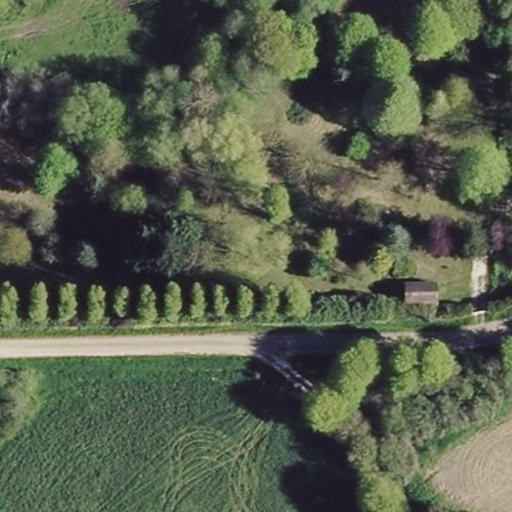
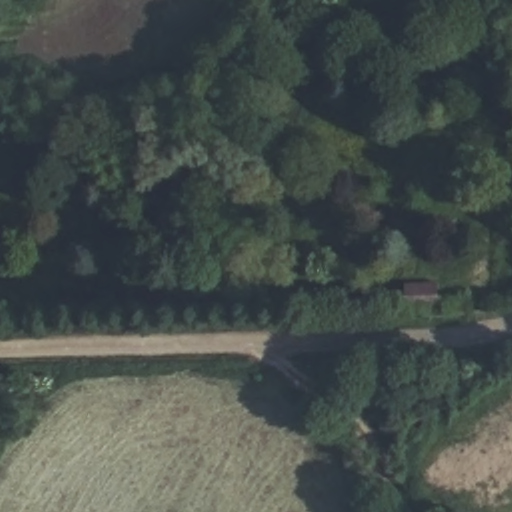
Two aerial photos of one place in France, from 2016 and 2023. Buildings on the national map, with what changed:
unchanged [(435,277),(441,300),(407,308),(400,286),(435,277)]

